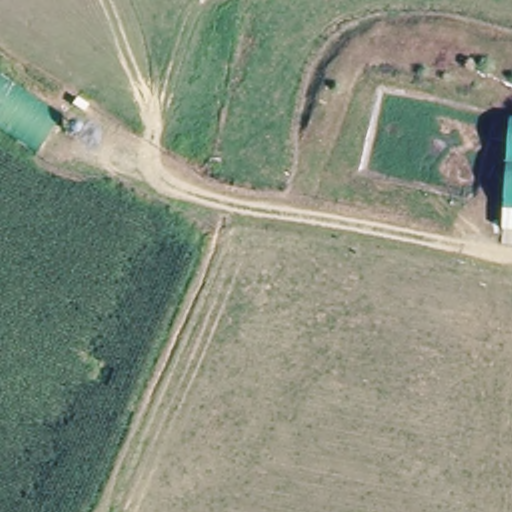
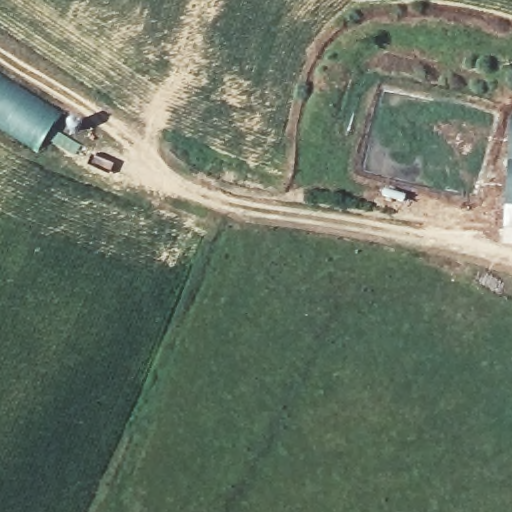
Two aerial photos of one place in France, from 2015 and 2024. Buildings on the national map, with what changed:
unchanged [(0,126),(0,77),(60,111),(41,149),(0,126)]
unchanged [(512,210),(507,210),(512,150),(512,210)]

